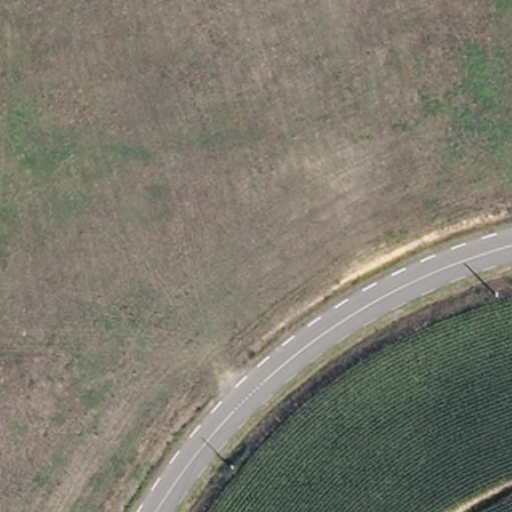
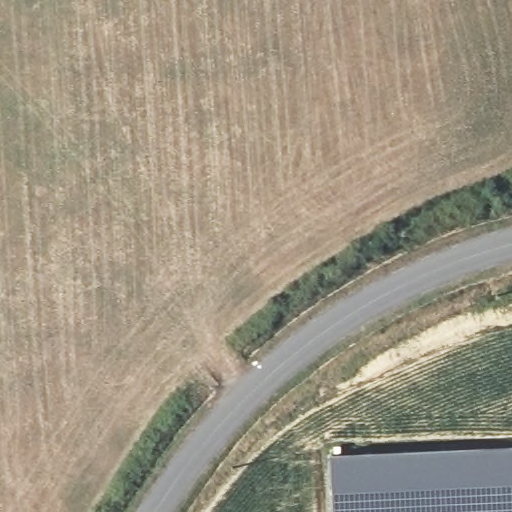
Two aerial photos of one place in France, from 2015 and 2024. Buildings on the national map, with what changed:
new [(332,491),(330,455),(512,445),(512,512),(333,512),(332,491)]

